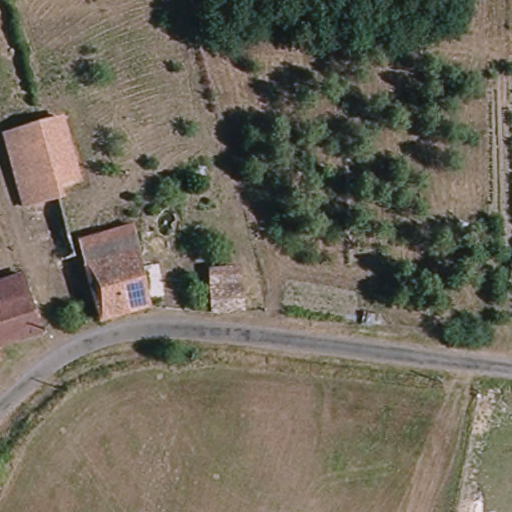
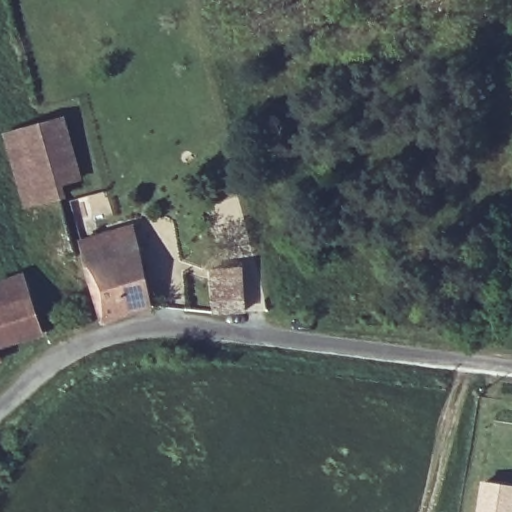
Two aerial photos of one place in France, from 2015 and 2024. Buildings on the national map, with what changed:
unchanged [(68,113),(86,179),(64,188),(67,200),(25,210),(5,134),(68,113)]
unchanged [(145,304),(92,315),(70,239),(124,225),(145,304)]
unchanged [(241,308),(209,313),(205,268),(235,264),(241,308)]
unchanged [(17,275),(35,338),(0,345),(0,281),(17,275)]
new [(512,485),(512,512),(474,512),(480,479),(512,485)]

